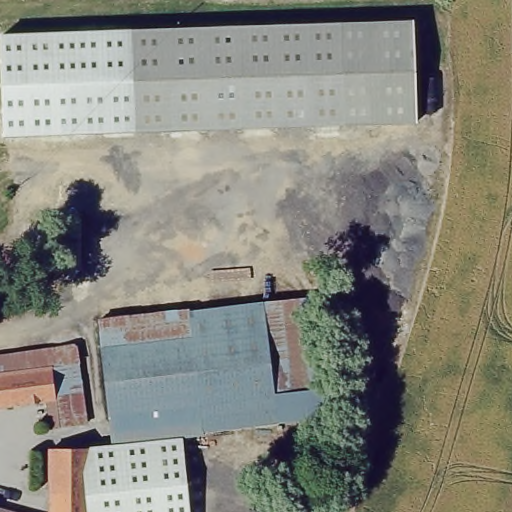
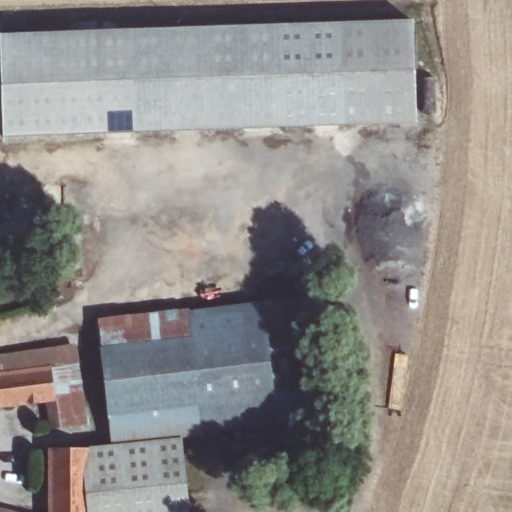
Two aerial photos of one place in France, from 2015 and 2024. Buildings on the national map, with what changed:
unchanged [(136,35),(419,24),(423,124),(140,135),(136,35)]
unchanged [(0,36),(136,35),(140,132),(3,137),(0,36)]
unchanged [(87,449),(112,444),(99,320),(263,301),(313,296),(328,420),(182,438),(190,512),(87,512),(87,490),(87,449)]
unchanged [(69,338),(75,362),(52,365),(39,367),(0,372),(0,348),(69,338)]
unchanged [(39,367),(52,365),(75,362),(82,405),(84,418),(44,425),(40,402),(0,407),(0,372),(39,367)]
unchanged [(87,440),(87,490),(87,512),(42,512),(43,445),(87,440)]
unchanged [(0,512),(0,505),(5,506),(22,512),(0,512)]

